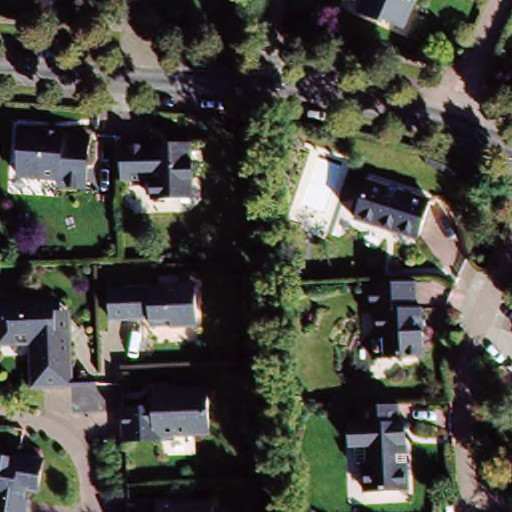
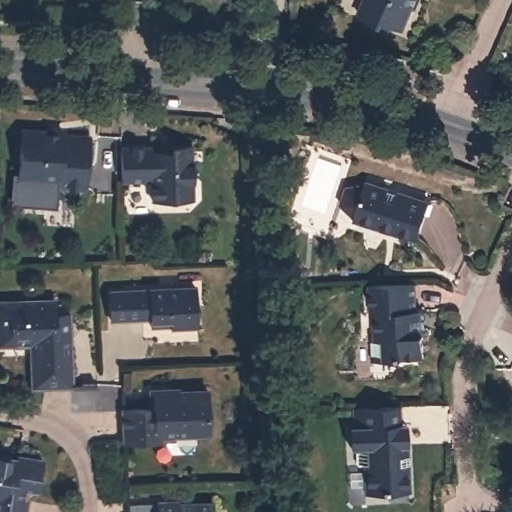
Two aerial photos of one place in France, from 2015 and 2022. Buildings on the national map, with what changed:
unchanged [(399,27),(386,22),(385,24),(358,13),(364,0),(418,0),(412,13),(405,29),(399,27)]
unchanged [(66,138),(91,140),(87,193),(58,191),(59,185),(18,182),(22,130),(49,132),(50,129),(66,130),(66,134),(66,138)]
unchanged [(118,144),(147,143),(149,148),(170,148),(170,143),(192,143),(193,199),(150,199),(148,181),(119,181),(118,144)]
unchanged [(432,201),(418,242),(354,222),(356,216),(341,206),(347,185),(366,185),(368,180),(432,201)]
unchanged [(390,282),(415,280),(415,308),(420,308),(420,313),(421,331),(422,356),(370,359),(368,334),(370,334),(369,310),(367,310),(366,283),(390,282)]
unchanged [(194,290),(195,328),(147,330),(147,321),(139,321),(105,322),(105,292),(194,290)]
unchanged [(0,343),(0,302),(49,299),(51,316),(64,315),(65,341),(66,387),(28,388),(26,342),(0,343)]
unchanged [(202,393),(205,437),(157,440),(157,445),(118,447),(116,412),(143,410),(142,396),(152,396),(161,395),(202,393)]
unchanged [(400,408),(400,424),(404,424),(405,444),(407,492),(361,495),(359,467),(352,468),(352,450),(347,451),(345,430),(350,429),(348,410),(400,408)]
unchanged [(7,461),(15,463),(16,457),(43,462),(37,496),(27,494),(26,501),(28,501),(26,512),(0,512),(0,459),(8,460),(7,461)]
unchanged [(176,506),(210,504),(211,512),(154,512),(154,507),(164,506),(176,506)]

